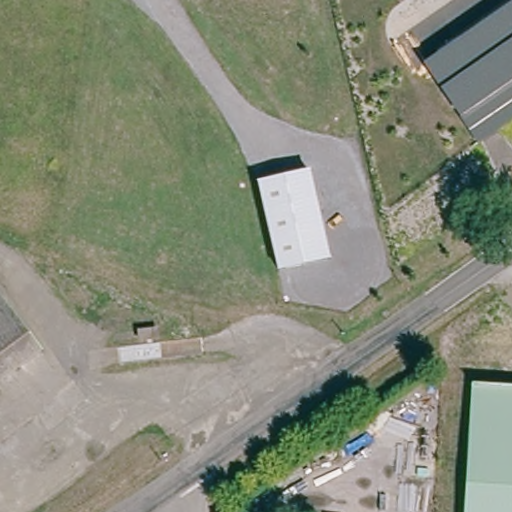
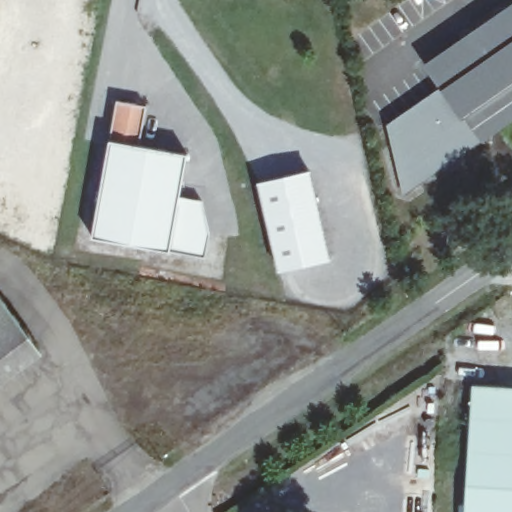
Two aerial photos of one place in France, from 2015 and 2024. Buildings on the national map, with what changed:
unchanged [(512,1),(512,117),(476,141),(459,115),(423,63),(512,1)]
new [(402,195),(386,122),(439,87),(459,115),(476,141),(402,195)]
new [(145,106),(138,145),(110,140),(117,100),(145,106)]
new [(168,249),(93,235),(110,140),(187,154),(180,196),(201,200),(210,234),(204,257),(168,249)]
unchanged [(330,260),(276,272),(257,181),(309,170),(330,260)]
unchanged [(37,349),(0,376),(0,300),(37,349)]
demolished [(152,329),(154,342),(135,345),(134,331),(152,329)]
unchanged [(512,386),(512,512),(463,512),(471,383),(512,386)]

